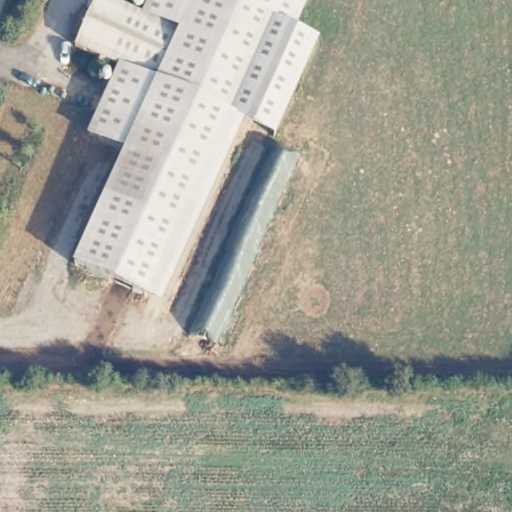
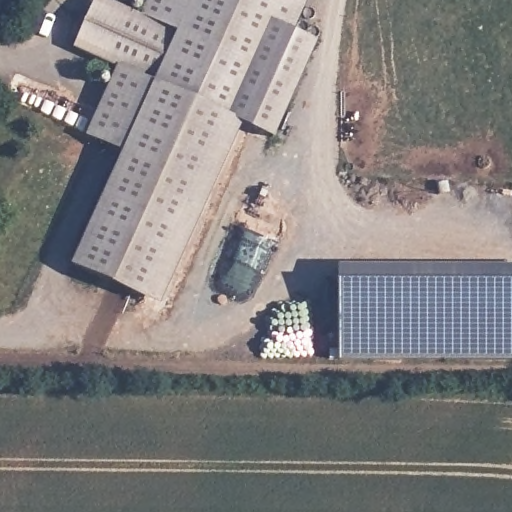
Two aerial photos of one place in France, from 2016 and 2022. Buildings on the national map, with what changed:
unchanged [(75,46),(97,0),(105,0),(142,17),(175,31),(153,82),(120,67),(75,46)]
unchanged [(142,17),(150,0),(308,0),(294,31),(317,41),(274,137),(228,116),(145,298),(75,266),(126,152),(89,135),(120,67),(153,82),(175,31),(142,17)]
new [(512,361),(341,357),(340,265),(512,267),(512,361)]

